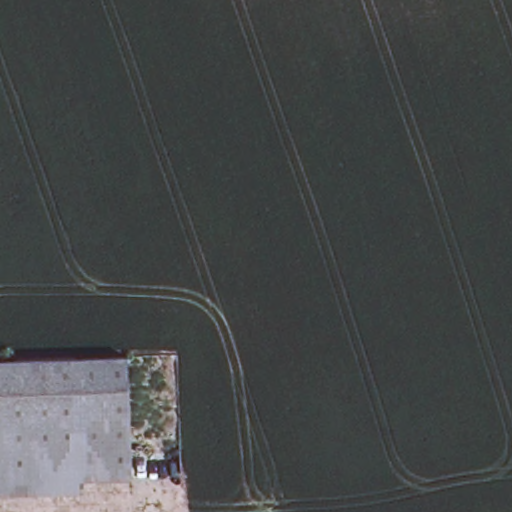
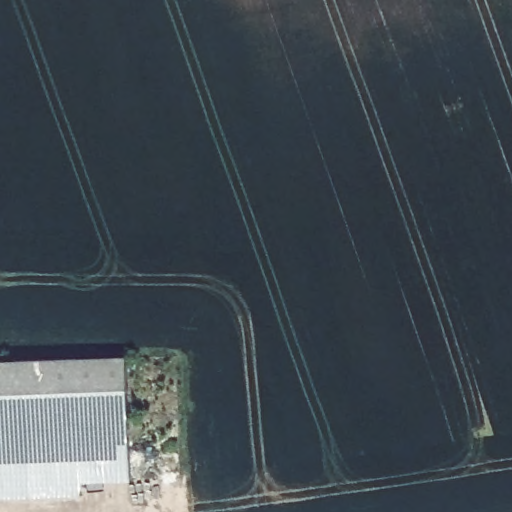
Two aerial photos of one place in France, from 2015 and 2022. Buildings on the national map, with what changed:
unchanged [(132,489),(0,497),(0,362),(127,356),(132,489)]

